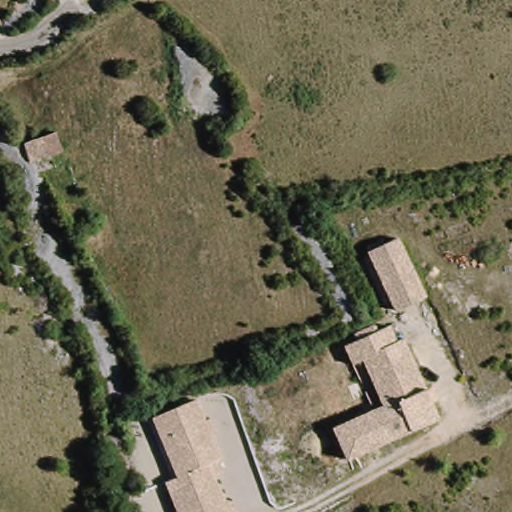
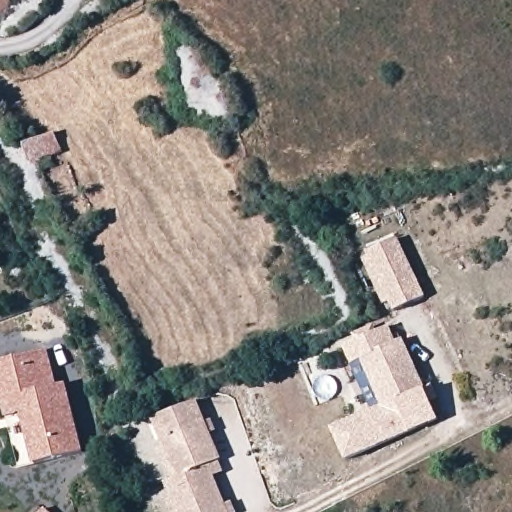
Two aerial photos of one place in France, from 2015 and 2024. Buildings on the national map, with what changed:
unchanged [(61,144),(53,154),(29,164),(20,144),(54,130),(61,144)]
unchanged [(391,242),(423,298),(394,315),(362,258),(391,242)]
unchanged [(367,385),(356,365),(346,371),(336,353),(379,330),(388,345),(394,341),(437,417),(349,467),(331,435),(381,410),(367,385)]
new [(65,382),(83,451),(32,465),(20,413),(4,416),(0,402),(0,361),(47,349),(55,385),(65,382)]
unchanged [(183,492),(163,443),(171,440),(163,417),(198,403),(222,462),(209,467),(227,512),(176,512),(171,497),(183,492)]

